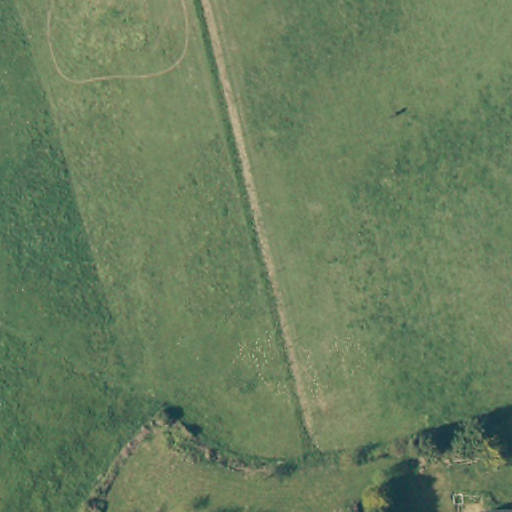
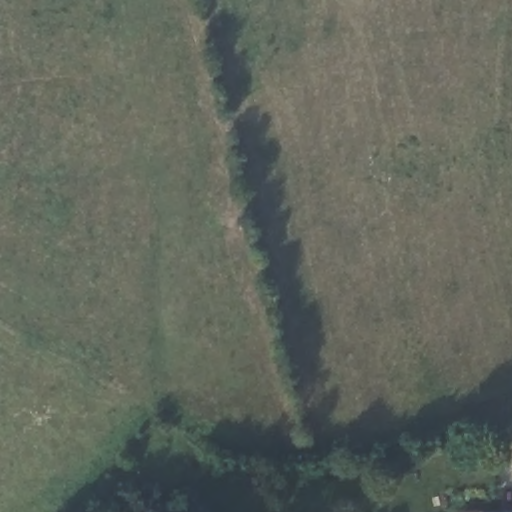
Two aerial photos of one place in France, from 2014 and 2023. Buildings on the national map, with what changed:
unchanged [(485,507),(512,506),(512,512),(463,512),(463,508),(485,507)]

